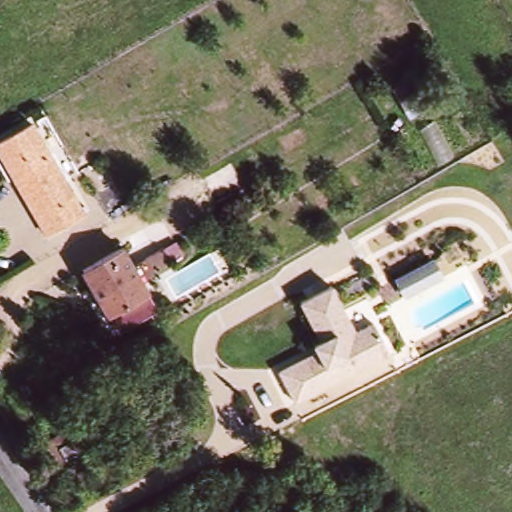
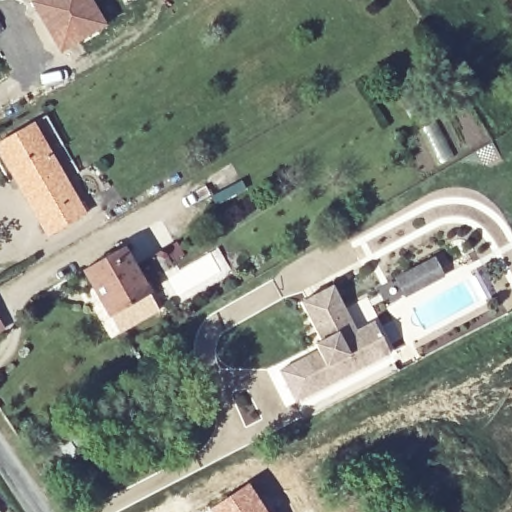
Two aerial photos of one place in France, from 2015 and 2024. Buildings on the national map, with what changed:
new [(62,47),(34,0),(93,0),(105,20),(62,47)]
unchanged [(0,154),(0,146),(30,128),(49,157),(34,166),(44,184),(60,175),(84,218),(52,237),(0,154)]
unchanged [(85,277),(125,254),(153,300),(115,323),(85,277)]
unchanged [(321,343),(298,298),(329,283),(351,328),(370,319),(386,351),(291,398),(276,366),(321,343)]
unchanged [(2,324),(0,325),(0,320),(2,324)]
new [(247,483),(267,512),(210,512),(208,509),(247,483)]

